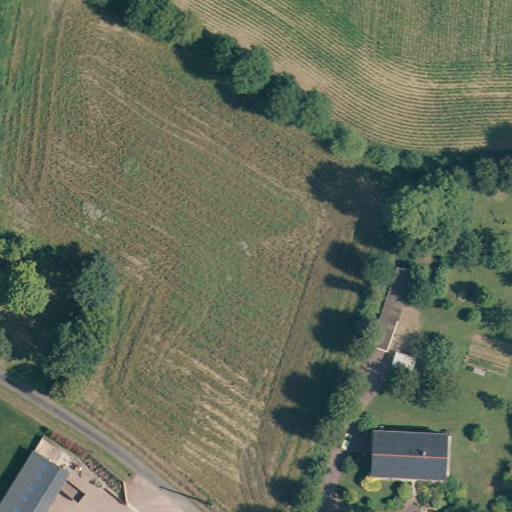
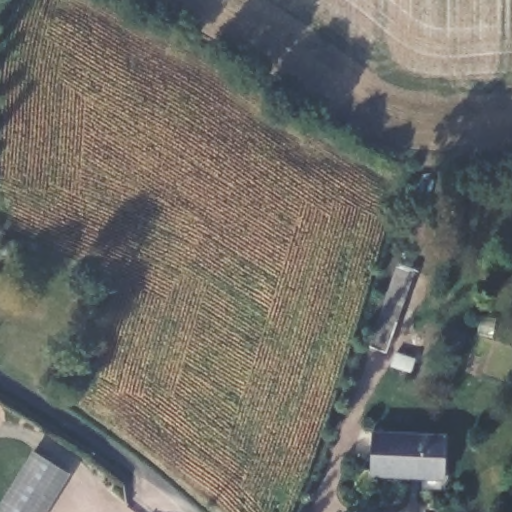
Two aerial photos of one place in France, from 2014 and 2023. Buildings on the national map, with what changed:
unchanged [(384,320),(396,324),(388,349),(375,345),(384,320)]
unchanged [(404,355),(418,360),(415,369),(401,363),(404,355)]
unchanged [(379,431),(450,432),(449,474),(379,474),(379,431)]
unchanged [(0,512),(0,509),(35,450),(70,472),(46,512),(0,512)]

